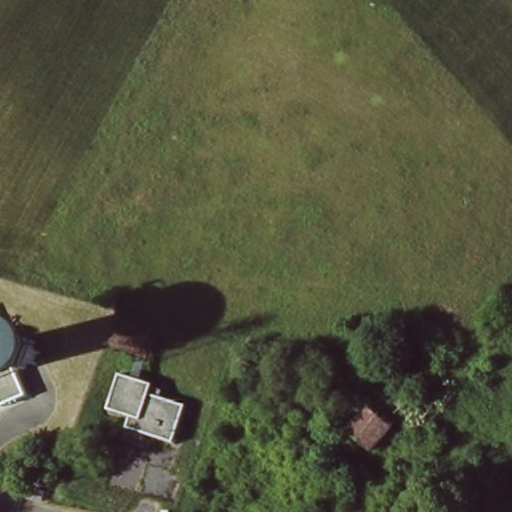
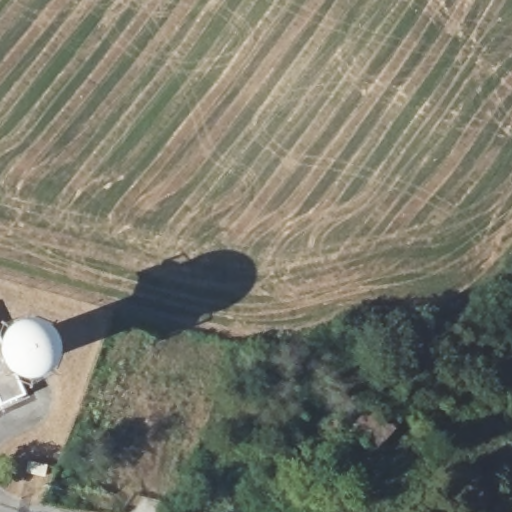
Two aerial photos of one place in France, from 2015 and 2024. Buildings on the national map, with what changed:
unchanged [(2,331),(17,325),(30,324),(41,327),(47,336),(53,349),(53,362),(47,373),(36,380),(25,382),(30,394),(7,405),(0,391),(0,325),(2,331)]
demolished [(123,429),(127,417),(107,410),(117,372),(151,384),(148,393),(185,406),(172,443),(123,429)]
new [(48,468),(45,479),(27,475),(29,464),(48,468)]

